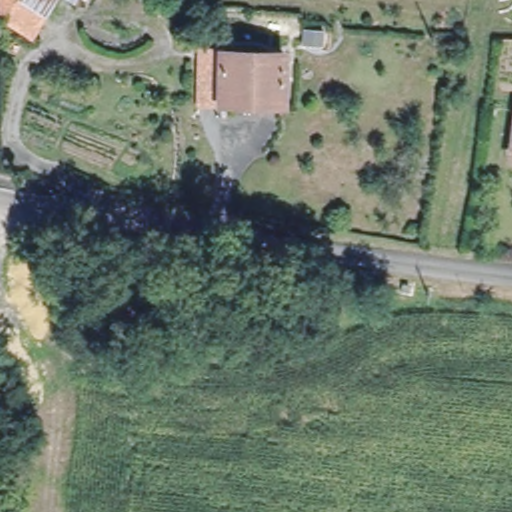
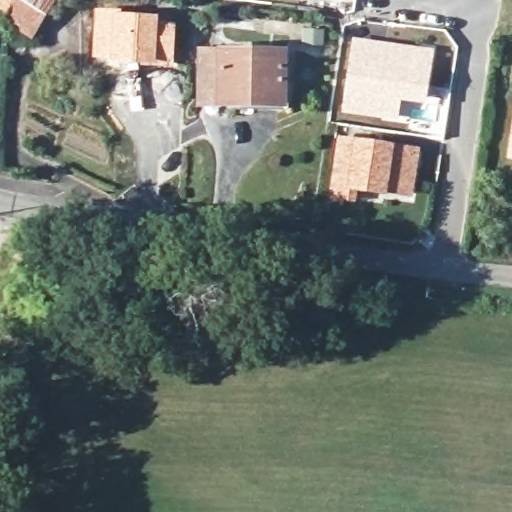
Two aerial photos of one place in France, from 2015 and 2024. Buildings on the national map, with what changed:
unchanged [(0,20),(0,0),(58,0),(33,40),(0,20)]
unchanged [(78,5),(69,0),(81,0),(78,5)]
unchanged [(86,1),(85,0),(86,0),(86,1)]
new [(302,2),(299,0),(303,0),(302,2)]
new [(95,8),(159,16),(159,20),(176,22),(173,66),(91,60),(95,8)]
new [(353,37),(435,48),(425,105),(402,101),(398,122),(340,113),(353,37)]
unchanged [(285,54),(284,105),(220,105),(221,53),(285,54)]
unchanged [(512,109),(512,158),(506,157),(512,109)]
new [(385,192),(355,188),(353,201),(333,198),(342,142),(416,152),(412,181),(410,196),(385,192)]

